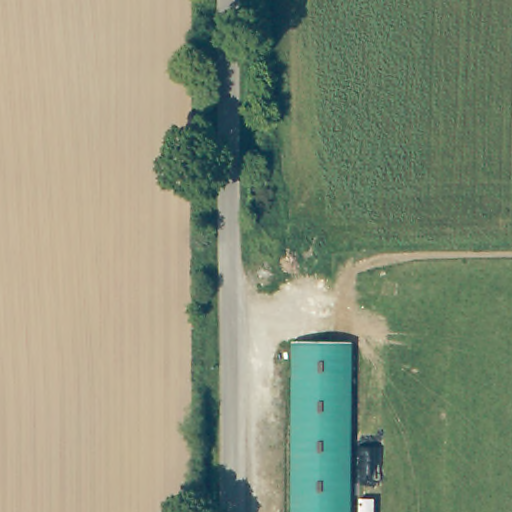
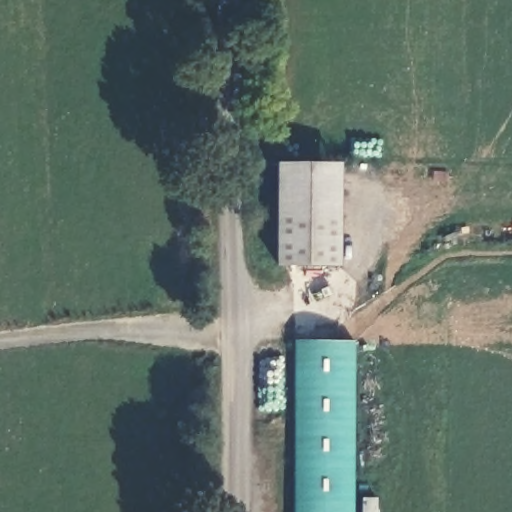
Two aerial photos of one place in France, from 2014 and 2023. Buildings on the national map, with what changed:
new [(339,164),(340,268),(276,267),(275,163),(339,164)]
unchanged [(357,512),(294,512),(293,343),(357,343),(357,512)]

